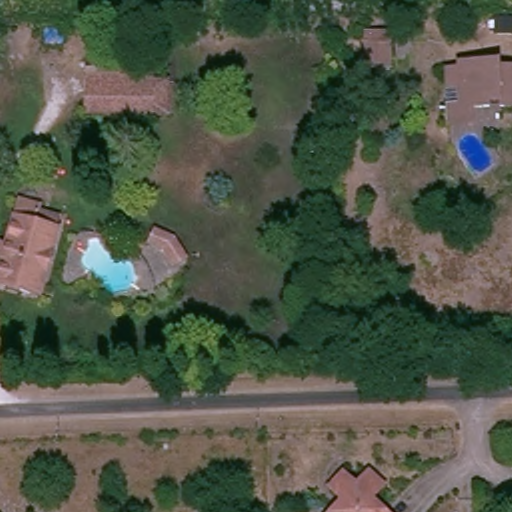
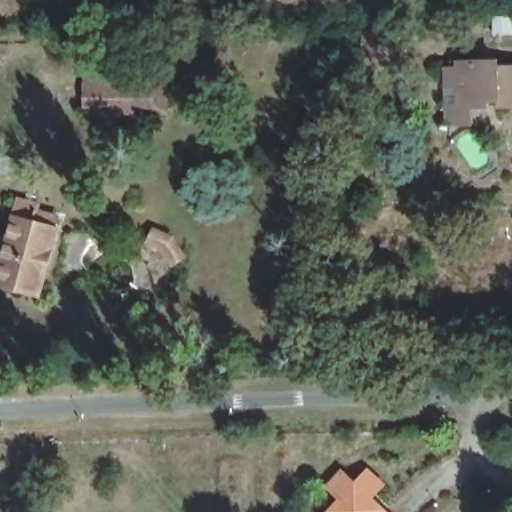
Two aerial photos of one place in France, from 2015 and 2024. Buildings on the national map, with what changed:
unchanged [(354,75),(355,41),(370,40),(378,40),(378,60),(377,75),(354,75)]
unchanged [(443,99),(457,98),(458,80),(448,80),(449,61),(459,60),(460,53),(500,52),(499,62),(512,62),(512,100),(498,100),(497,94),(482,95),(481,100),(468,99),(467,115),(443,115),(443,99)]
unchanged [(82,74),(169,72),(169,116),(82,117),(82,74)]
unchanged [(55,220),(37,293),(0,284),(0,267),(15,209),(55,220)]
unchanged [(375,473),(380,477),(368,491),(376,498),(390,512),(320,512),(337,490),(326,476),(338,465),(348,475),(355,475),(364,463),(375,473)]

